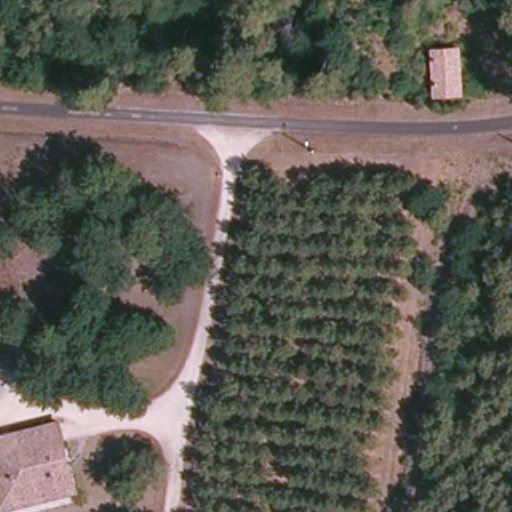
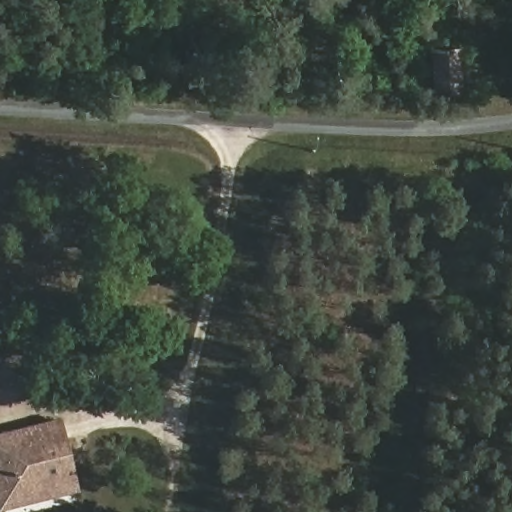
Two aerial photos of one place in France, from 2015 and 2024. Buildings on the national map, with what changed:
unchanged [(97,6),(100,0),(150,0),(137,26),(97,6)]
unchanged [(466,56),(464,97),(438,97),(438,58),(466,56)]
unchanged [(25,512),(0,512),(0,439),(64,425),(81,497),(25,512)]

